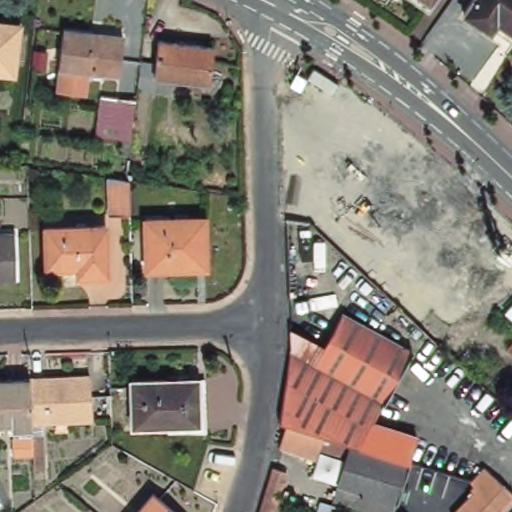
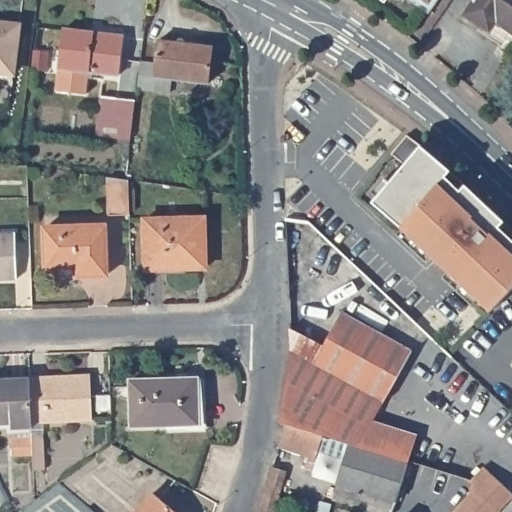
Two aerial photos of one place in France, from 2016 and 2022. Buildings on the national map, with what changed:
unchanged [(412,0),(431,0),(425,9),(412,0)]
unchanged [(483,23),(465,12),(473,0),(512,0),(512,38),(485,21),(483,23)]
unchanged [(21,30),(14,76),(0,74),(0,26),(21,30)]
unchanged [(58,93),(60,71),(65,32),(95,36),(125,39),(125,44),(120,79),(90,75),(87,97),(58,93)]
unchanged [(213,49),(208,86),(154,79),(159,42),(213,49)]
unchanged [(137,99),(132,137),(101,133),(105,95),(137,99)]
new [(372,202),(421,146),(451,171),(447,176),(460,188),(464,184),(505,222),(500,227),(512,237),(512,287),(490,311),(400,227),(372,202)]
unchanged [(122,182),(125,182),(126,216),(105,217),(104,180),(122,182)]
demolished [(309,180),(310,227),(287,223),(285,181),(309,180)]
unchanged [(206,221),(209,270),(150,272),(147,222),(206,221)]
unchanged [(101,227),(103,278),(75,280),(75,274),(45,275),(44,230),(101,227)]
unchanged [(16,236),(19,281),(0,282),(0,236),(16,236)]
demolished [(512,289),(496,306),(473,285),(507,247),(512,252),(512,289)]
unchanged [(342,315),(413,352),(385,405),(315,366),(342,315)]
demolished [(512,342),(512,350),(508,347),(512,342)]
unchanged [(324,438),(286,427),(280,425),(291,354),(315,366),(385,405),(371,430),(412,442),(407,462),(361,449),(324,438)]
unchanged [(45,378),(45,384),(67,383),(67,377),(88,377),(90,422),(29,423),(27,379),(45,378)]
unchanged [(27,379),(29,423),(29,431),(7,432),(7,422),(0,422),(0,380),(27,379)]
unchanged [(196,381),(197,426),(131,427),(130,382),(196,381)]
unchanged [(394,512),(376,512),(333,499),(345,458),(320,451),(324,438),(361,449),(407,462),(410,463),(394,512)]
unchanged [(274,512),(260,512),(265,496),(273,467),(286,472),(277,500),(278,501),(274,512)]
unchanged [(466,482),(480,467),(511,495),(495,512),(452,512),(471,492),(469,490),(471,483),(466,482)]
unchanged [(150,493),(173,512),(136,512),(150,493)]

